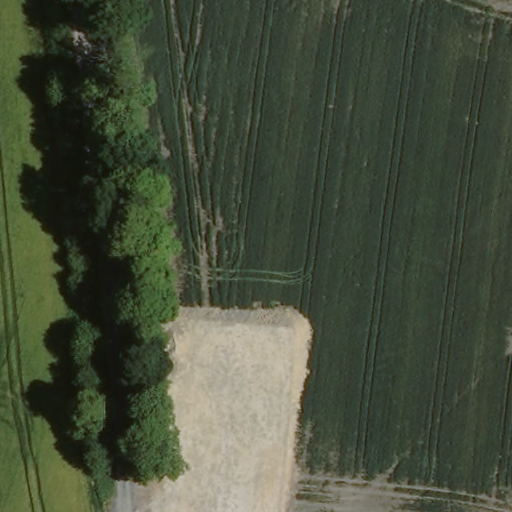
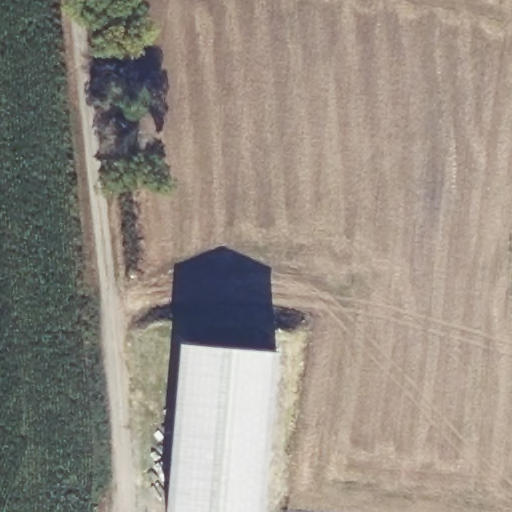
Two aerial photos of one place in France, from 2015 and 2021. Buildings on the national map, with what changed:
new [(179,343),(277,350),(264,512),(166,512),(179,343)]

